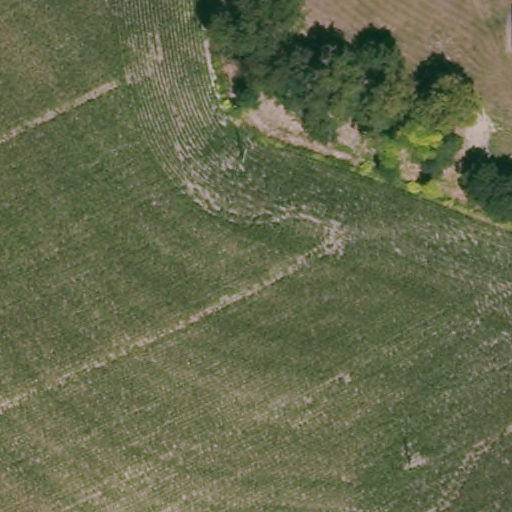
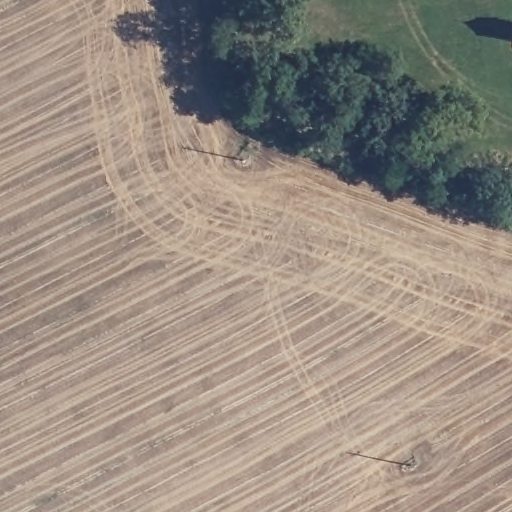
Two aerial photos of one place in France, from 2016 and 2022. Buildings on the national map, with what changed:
unchanged [(512,26),(512,49),(510,49),(510,26),(512,26)]

